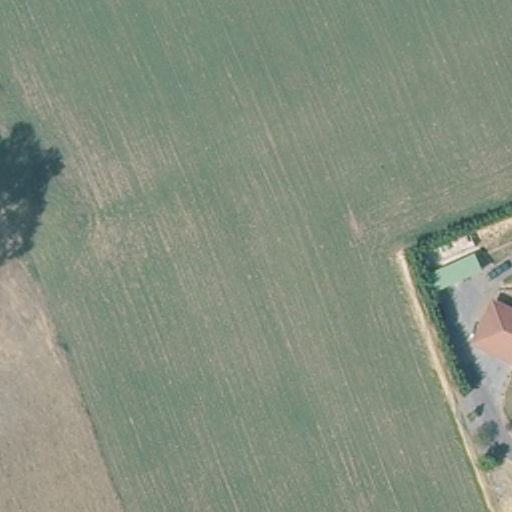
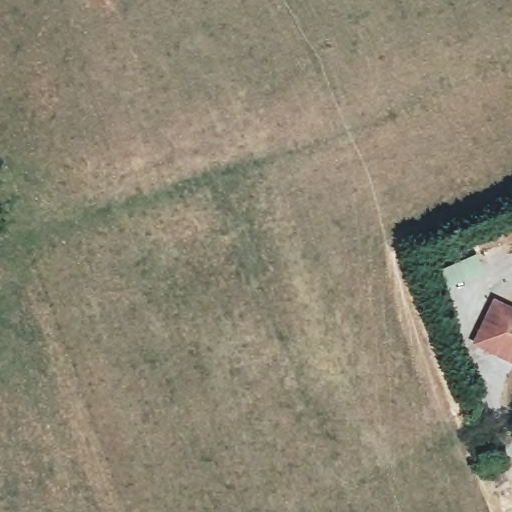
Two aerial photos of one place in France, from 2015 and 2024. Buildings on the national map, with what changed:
unchanged [(478,347),(491,317),(495,308),(512,313),(512,362),(496,355),(478,347)]

